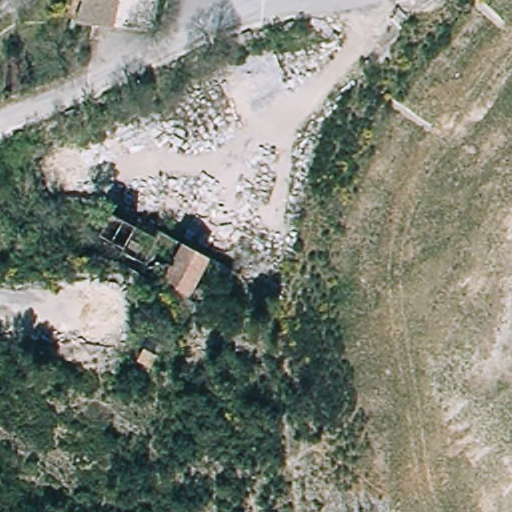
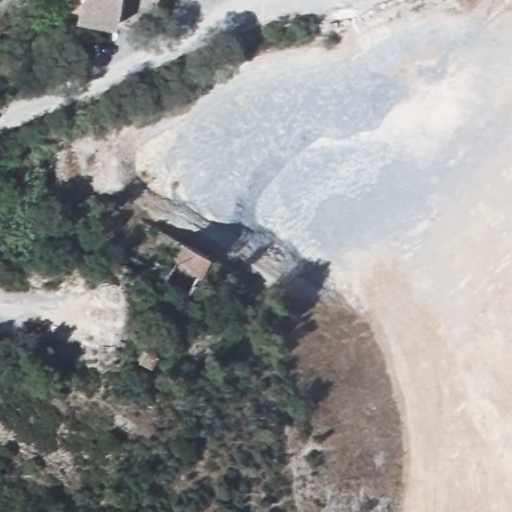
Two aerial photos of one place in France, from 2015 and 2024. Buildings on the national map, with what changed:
unchanged [(74,17),(56,12),(60,0),(115,0),(112,21),(74,17)]
unchanged [(143,232),(131,256),(110,246),(112,242),(88,229),(99,209),(143,232)]
unchanged [(209,262),(187,302),(158,286),(179,247),(209,262)]
unchanged [(140,354),(153,331),(166,338),(153,362),(140,354)]

